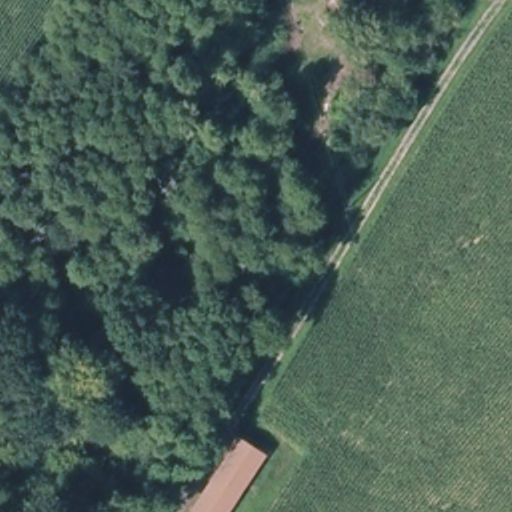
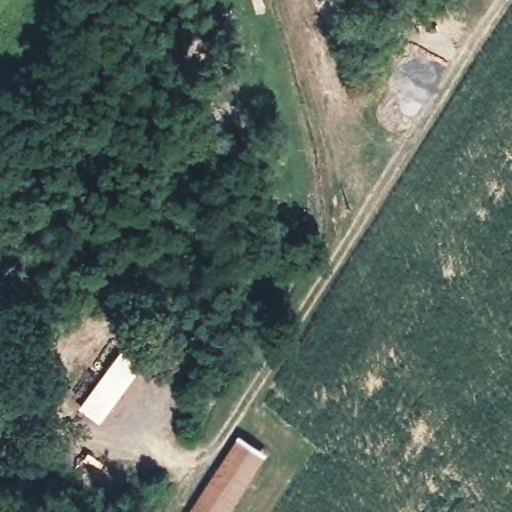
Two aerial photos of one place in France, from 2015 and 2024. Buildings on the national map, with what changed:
new [(127,343),(147,359),(97,424),(77,408),(127,343)]
unchanged [(236,433),(264,452),(226,512),(187,512),(236,433)]

